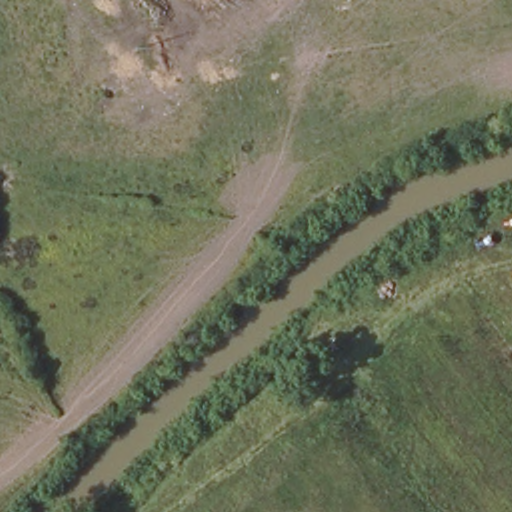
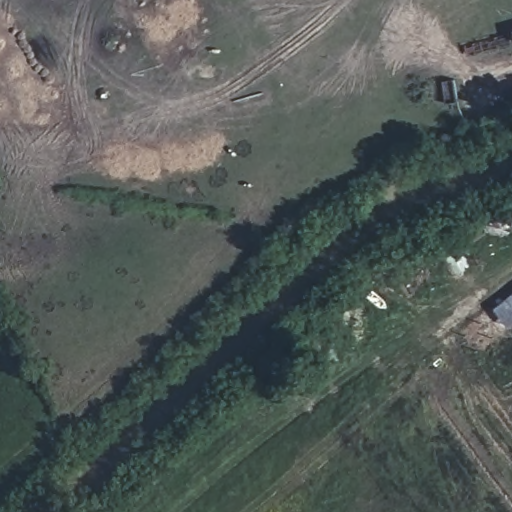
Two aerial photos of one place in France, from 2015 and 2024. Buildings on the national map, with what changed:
new [(511,327),(496,310),(512,297),(512,326),(511,327)]

